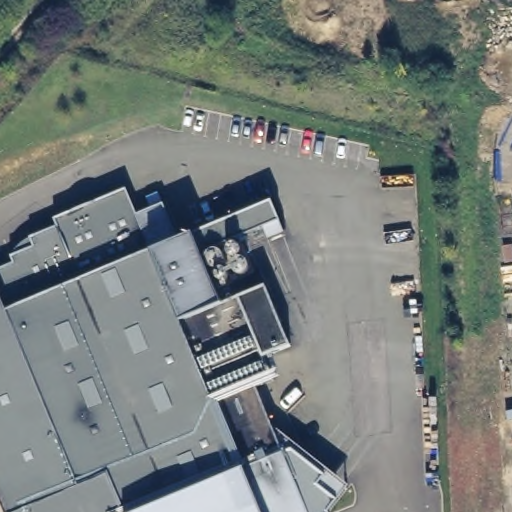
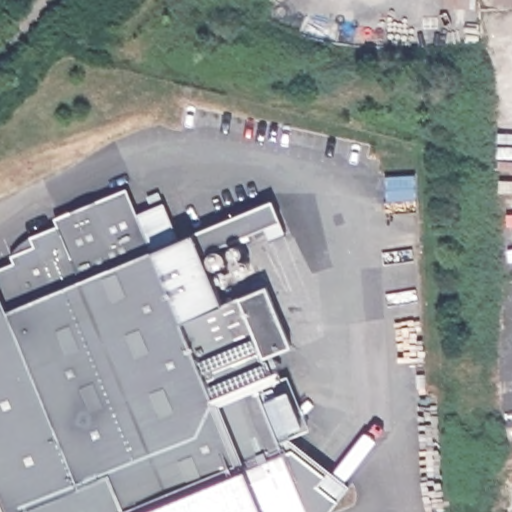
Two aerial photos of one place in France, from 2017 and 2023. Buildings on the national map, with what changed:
unchanged [(0,498),(0,269),(15,262),(12,255),(33,246),(30,237),(55,227),(51,220),(58,217),(113,194),(125,190),(135,216),(160,206),(175,240),(190,234),(220,306),(237,297),(271,381),(255,388),(271,426),(347,486),(335,501),(327,512),(6,512),(0,498)]
unchanged [(262,357),(237,297),(220,306),(190,234),(272,201),(285,233),(267,241),(262,227),(245,235),(265,286),(290,345),(262,357)]

